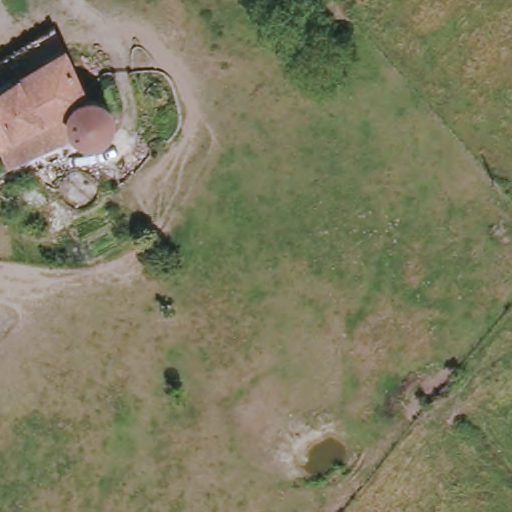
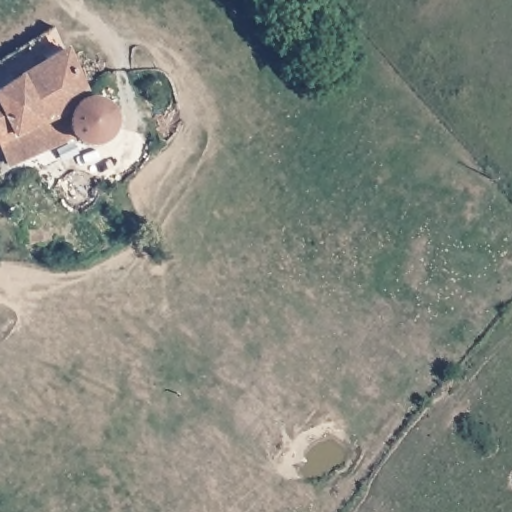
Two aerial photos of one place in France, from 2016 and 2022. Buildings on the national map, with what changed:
unchanged [(67,69),(25,97),(0,113),(0,83),(12,75),(13,75),(52,49),(57,56),(67,69)]
unchanged [(85,113),(93,109),(105,109),(115,116),(120,130),(117,142),(108,150),(97,152),(83,147),(80,140),(77,124),(8,157),(0,161),(0,113),(25,97),(67,69),(85,113)]
unchanged [(21,180),(8,157),(77,124),(80,140),(83,147),(21,180)]

